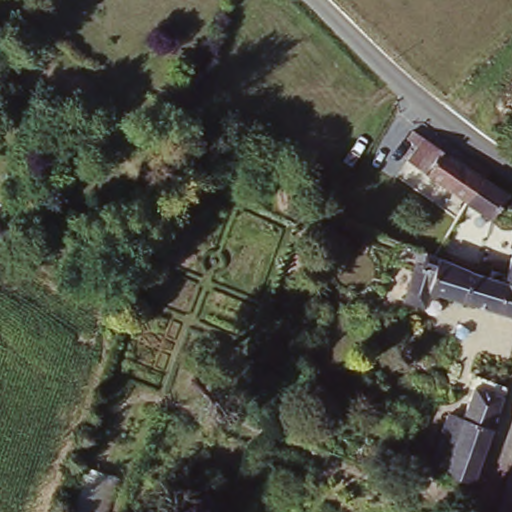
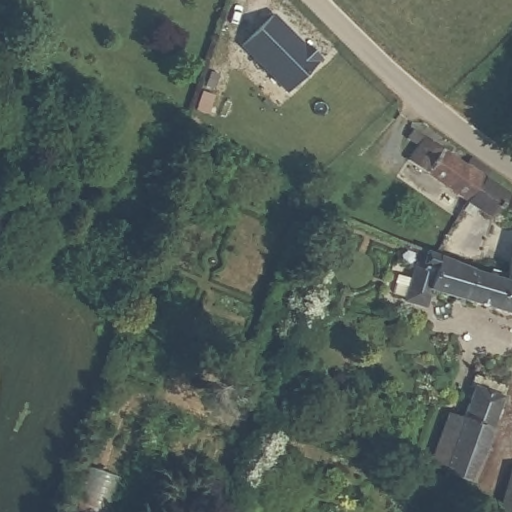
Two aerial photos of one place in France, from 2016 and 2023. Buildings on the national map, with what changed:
new [(301,43),(304,40),(322,59),(286,94),(242,46),(272,15),(301,43)]
unchanged [(494,224),(466,205),(406,164),(414,153),(400,143),(411,134),(461,170),(471,163),(489,175),(484,181),(507,198),(494,224)]
unchanged [(499,285),(508,253),(512,254),(512,291),(511,291),(499,285)]
unchanged [(468,279),(499,285),(511,291),(512,291),(512,324),(430,299),(424,313),(407,305),(419,269),(434,263),(460,272),(468,279)]
unchanged [(437,452),(433,450),(442,426),(437,423),(442,410),(466,417),(477,387),(474,385),(477,377),(509,387),(472,497),(465,495),(443,487),(450,469),(433,462),(437,452)]
unchanged [(83,467),(121,479),(110,512),(69,512),(83,467)]
unchanged [(512,512),(507,512),(512,494),(512,512)]

